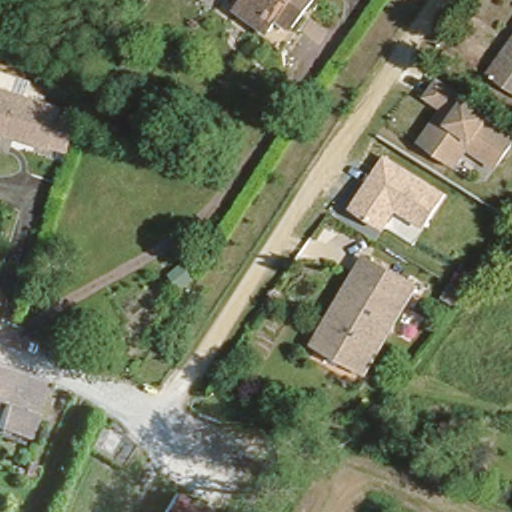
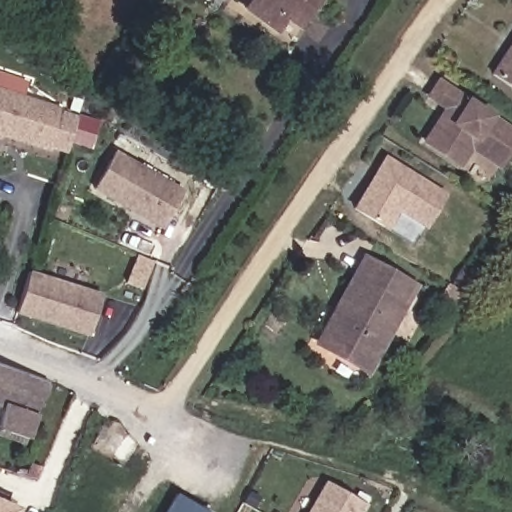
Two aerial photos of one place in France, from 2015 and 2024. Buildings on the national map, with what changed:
unchanged [(286,10),(272,29),(242,7),(248,0),(318,0),(301,21),(286,10)]
unchanged [(512,46),(512,81),(495,70),(512,46)]
unchanged [(23,85),(18,99),(65,117),(68,119),(56,155),(52,154),(2,132),(4,128),(0,126),(0,75),(23,85)]
unchanged [(471,155),(461,170),(420,143),(442,110),(427,100),(439,78),(466,97),(496,116),(512,126),(512,156),(500,174),(471,155)]
new [(162,231),(92,190),(115,151),(184,190),(162,231)]
unchanged [(427,230),(396,211),(385,230),(353,210),(388,155),(448,194),(427,230)]
unchanged [(365,363),(315,333),(366,251),(416,281),(365,363)]
demolished [(166,273),(183,258),(198,275),(182,290),(166,273)]
new [(16,314),(29,270),(102,293),(88,335),(16,314)]
unchanged [(441,298),(453,280),(471,291),(460,310),(441,298)]
unchanged [(0,432),(0,417),(0,415),(4,396),(0,395),(0,357),(47,373),(30,422),(28,438),(0,432)]
new [(0,407),(0,395),(4,396),(2,407),(0,407)]
new [(367,512),(315,512),(332,481),(371,504),(367,512)]
unchanged [(205,507),(203,512),(166,512),(177,491),(205,507)]
new [(20,508),(19,512),(0,512),(0,499),(20,508)]

